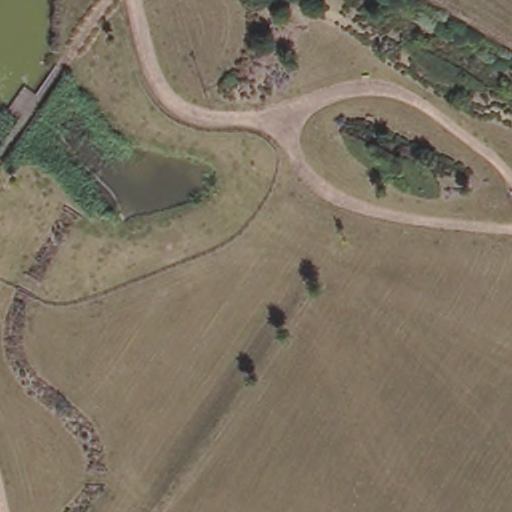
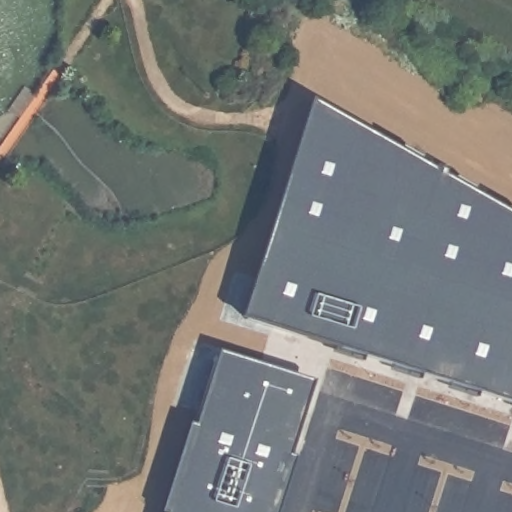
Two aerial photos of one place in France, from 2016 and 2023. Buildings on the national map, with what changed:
new [(512,214),(512,401),(243,315),(310,99),(512,214)]
new [(288,451),(294,455),(277,512),(162,512),(187,425),(194,427),(217,350),(309,381),(288,451)]

